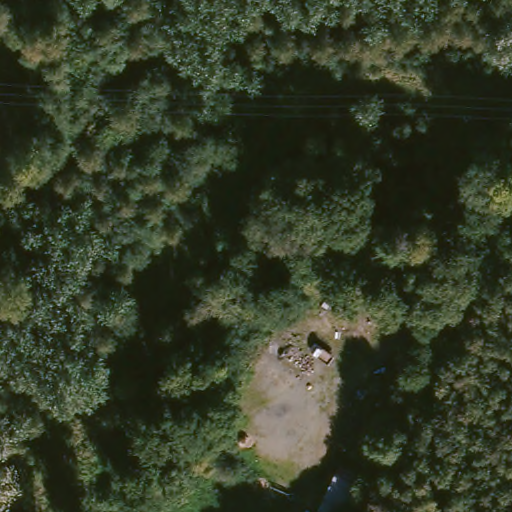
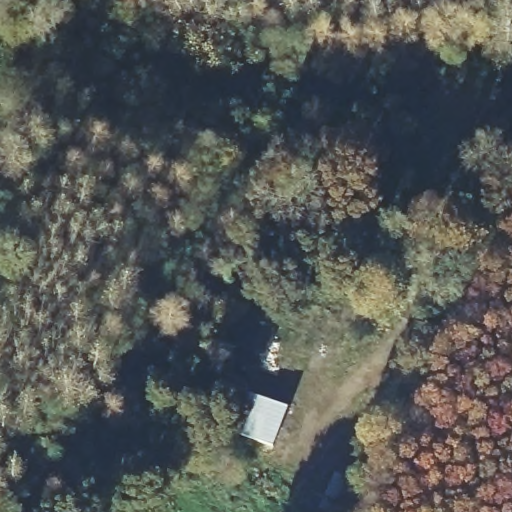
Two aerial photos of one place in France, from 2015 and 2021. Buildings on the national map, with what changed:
new [(273,447),(234,433),(248,393),(288,408),(273,447)]
unchanged [(350,496),(342,512),(313,512),(326,483),(350,496)]

